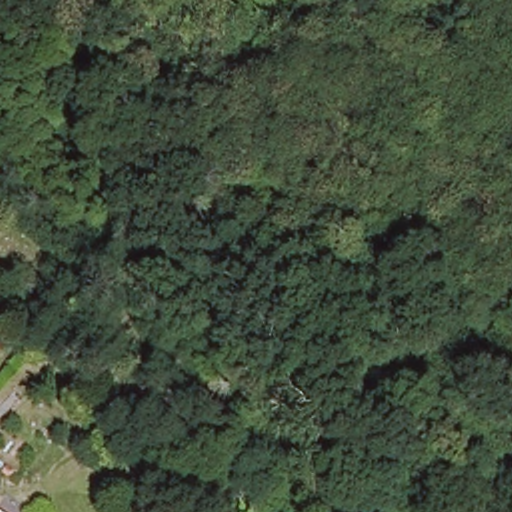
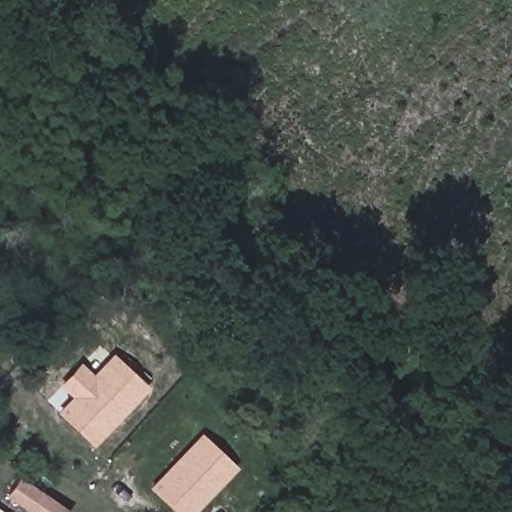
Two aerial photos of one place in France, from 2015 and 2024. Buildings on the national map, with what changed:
new [(72,398),(59,386),(81,363),(94,375),(113,354),(150,388),(94,448),(58,413),(72,398)]
new [(239,468),(197,512),(175,512),(150,489),(202,433),(239,468)]
new [(11,495),(21,480),(40,493),(68,512),(34,512),(29,509),(11,495)]

